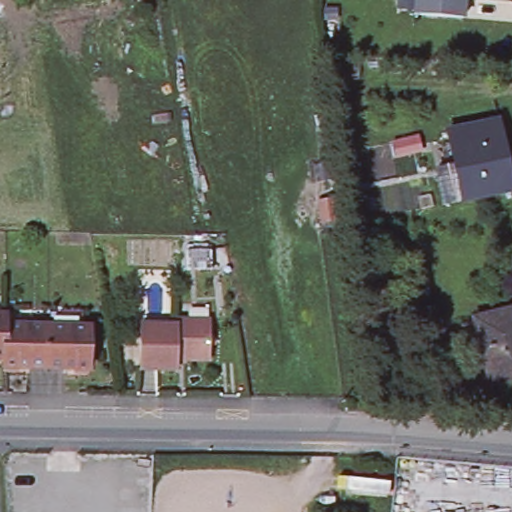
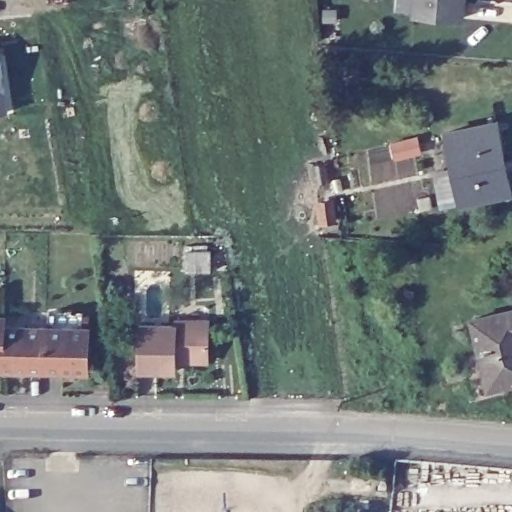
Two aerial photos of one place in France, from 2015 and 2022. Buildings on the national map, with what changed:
unchanged [(403,0),(468,0),(467,20),(418,16),(418,13),(402,11),(403,0)]
new [(10,110),(0,111),(0,55),(10,110)]
unchanged [(456,170),(449,136),(499,125),(512,186),(512,193),(464,205),(448,208),(441,173),(456,170)]
unchanged [(182,197),(185,216),(171,218),(168,199),(182,197)]
unchanged [(492,388),(474,321),(512,310),(512,382),(492,388)]
unchanged [(8,316),(8,325),(7,359),(0,358),(0,316),(8,316)]
unchanged [(173,326),(173,319),(205,320),(206,359),(174,359),(174,369),(137,369),(138,325),(173,326)]
unchanged [(50,327),(49,370),(7,368),(7,359),(8,325),(50,327)]
unchanged [(93,328),(92,371),(49,370),(50,327),(93,328)]

